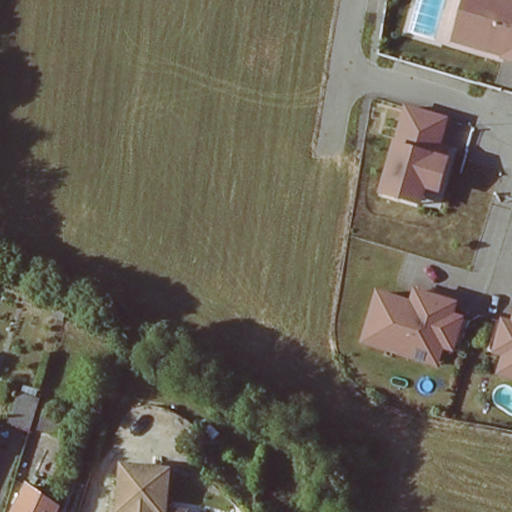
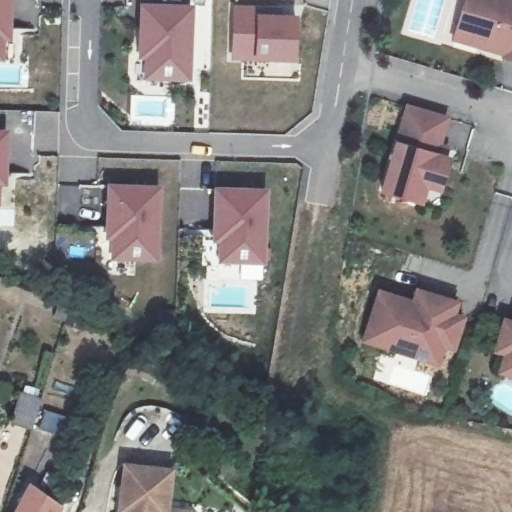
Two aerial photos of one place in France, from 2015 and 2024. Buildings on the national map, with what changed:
new [(8,40),(7,61),(0,61),(0,0),(16,0),(15,40),(8,40)]
unchanged [(512,0),(512,57),(452,41),(464,0),(512,0)]
new [(195,5),(195,77),(148,76),(148,61),(141,61),(142,3),(195,5)]
new [(258,4),(257,10),(304,11),(302,63),(233,62),(235,4),(258,4)]
unchanged [(450,116),(438,153),(452,157),(443,192),(428,187),(423,204),(378,191),(395,139),(406,102),(450,116)]
new [(10,128),(10,185),(3,185),(2,209),(0,209),(0,128),(10,128)]
new [(169,181),(167,264),(113,263),(115,241),(108,240),(110,180),(169,181)]
new [(272,186),(271,259),(222,259),(222,237),(215,236),(216,185),(272,186)]
unchanged [(460,301),(457,312),(467,316),(456,353),(445,350),(441,367),(361,343),(380,287),(415,297),(417,287),(460,301)]
unchanged [(504,355),(492,352),(505,316),(512,318),(512,379),(497,375),(504,355)]
unchanged [(11,421),(20,391),(41,398),(31,427),(11,421)]
unchanged [(134,467),(180,474),(175,512),(127,512),(134,467)]
unchanged [(55,512),(15,512),(30,485),(57,505),(55,512)]

